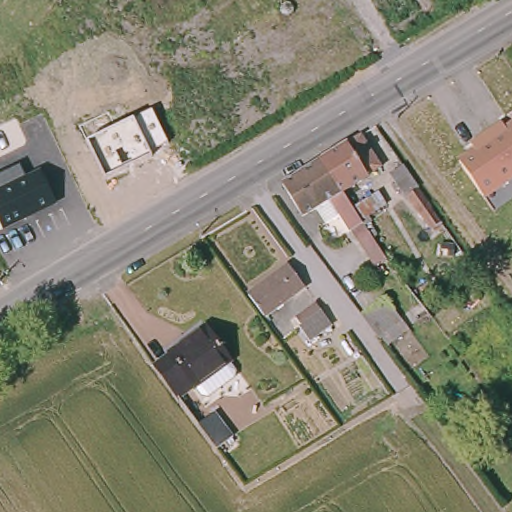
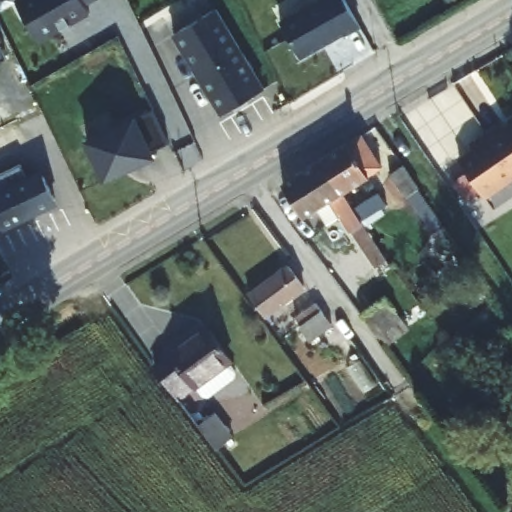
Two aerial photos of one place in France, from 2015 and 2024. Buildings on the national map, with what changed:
new [(102,0),(103,2),(84,12),(90,20),(36,48),(17,5),(29,0),(102,0)]
new [(300,66),(280,26),(327,0),(340,0),(358,34),(300,66)]
new [(265,96),(223,122),(175,42),(217,15),(265,96)]
new [(0,68),(0,53),(6,66),(0,68)]
unchanged [(152,108),(170,146),(105,180),(88,142),(152,108)]
unchanged [(476,150),(472,142),(500,124),(504,129),(512,123),(512,179),(484,198),(460,160),(476,150)]
unchanged [(347,144),(348,145),(362,137),(381,166),(367,175),(368,176),(345,191),(323,157),(347,144)]
unchanged [(293,176),(315,162),(323,157),(345,191),(342,192),(352,207),(378,191),(387,205),(362,221),(385,256),(387,260),(375,268),(350,232),(349,232),(340,217),(327,225),(317,208),(302,217),(282,186),(295,178),(293,176)]
unchanged [(26,179),(38,173),(55,205),(3,231),(0,225),(0,174),(20,165),(26,179)]
unchanged [(402,165),(441,221),(430,229),(408,195),(406,197),(390,173),(402,165)]
unchanged [(304,285),(264,315),(249,295),(288,265),(304,285)]
unchanged [(385,297),(410,328),(388,345),(380,335),(378,336),(362,315),(385,297)]
unchanged [(332,325),(310,341),(298,327),(300,325),(296,320),(295,317),(315,302),(317,305),(332,325)]
unchanged [(230,360),(228,361),(239,375),(205,400),(195,386),(178,400),(171,390),(155,370),(153,366),(205,328),(230,360)]
unchanged [(224,428),(208,440),(198,426),(213,415),(224,428)]

